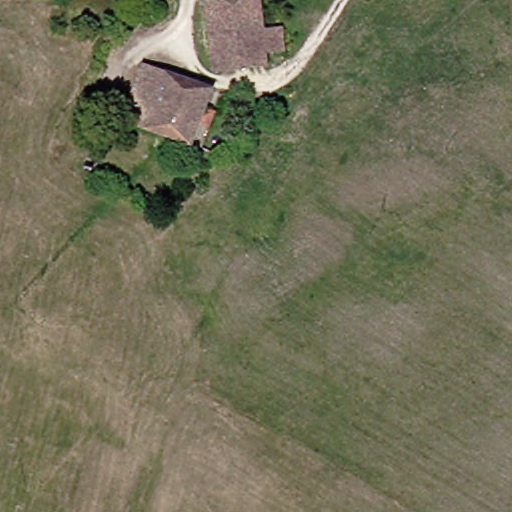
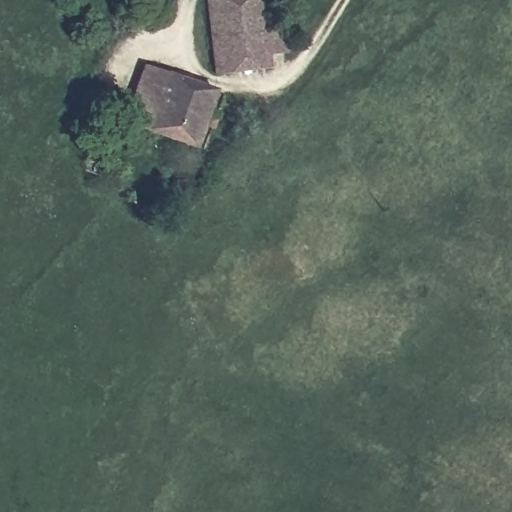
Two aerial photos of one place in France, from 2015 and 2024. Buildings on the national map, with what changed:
unchanged [(214,76),(213,55),(208,0),(259,0),(262,33),(289,31),(291,66),(265,67),(265,73),(214,76)]
unchanged [(217,129),(209,125),(198,148),(126,119),(150,67),(220,93),(213,113),(221,117),(217,129)]

